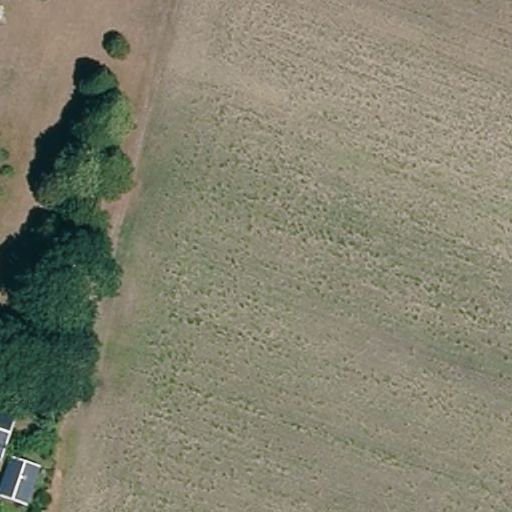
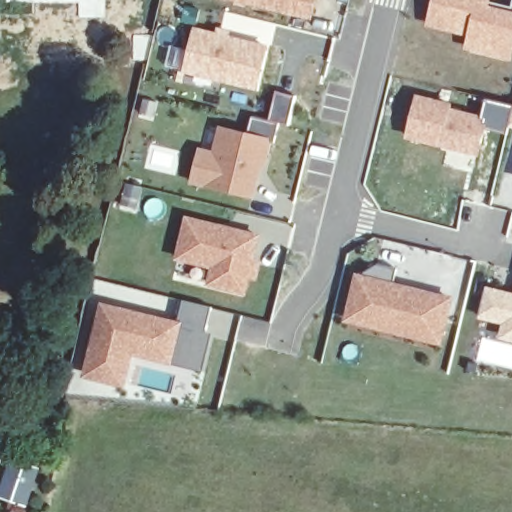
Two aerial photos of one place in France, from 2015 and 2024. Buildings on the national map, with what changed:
new [(231,0),(316,0),(312,18),(231,0)]
new [(491,0),(490,1),(511,6),(512,4),(512,59),(511,61),(464,50),(467,37),(425,27),(432,0),(491,0)]
new [(257,84),(187,66),(197,26),(267,45),(257,84)]
new [(452,103),(451,108),(488,117),(480,157),(405,138),(415,95),(452,103)]
new [(507,135),(485,130),(488,117),(481,116),(485,99),(512,105),(512,114),(510,123),(507,135)]
new [(512,115),(512,123),(510,123),(512,115)]
new [(265,156),(262,155),(253,193),(193,178),(201,148),(215,151),(221,126),(270,138),(265,156)]
new [(261,236),(256,259),(262,261),(256,282),(249,281),(246,295),(205,287),(210,268),(175,262),(184,216),(261,236)]
new [(411,287),(418,289),(449,297),(439,335),(410,328),(411,320),(391,314),(387,327),(364,321),(365,318),(346,313),(356,273),(361,274),(363,269),(376,261),(396,267),(392,282),(411,287)]
new [(484,287),(512,294),(512,323),(477,314),(484,287)]
new [(200,352),(171,345),(169,356),(129,346),(121,379),(85,370),(102,302),(176,321),(182,296),(211,304),(200,352)]
new [(365,318),(364,321),(387,327),(391,314),(411,320),(410,328),(439,335),(449,297),(454,298),(443,345),(345,322),(346,313),(365,318)]
unchanged [(17,414),(8,441),(5,440),(0,455),(0,408),(17,414)]
unchanged [(9,489),(17,462),(31,467),(37,469),(31,487),(28,495),(9,489)]

